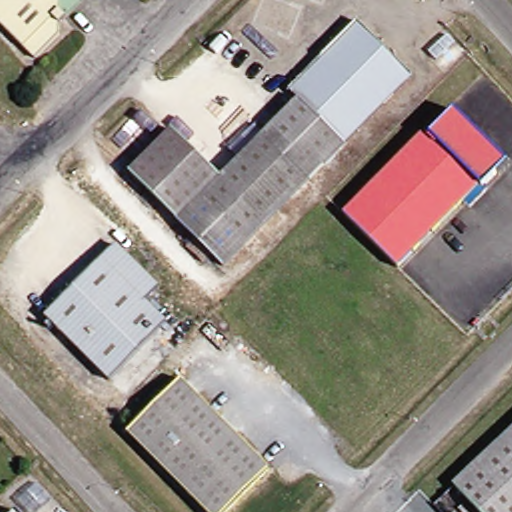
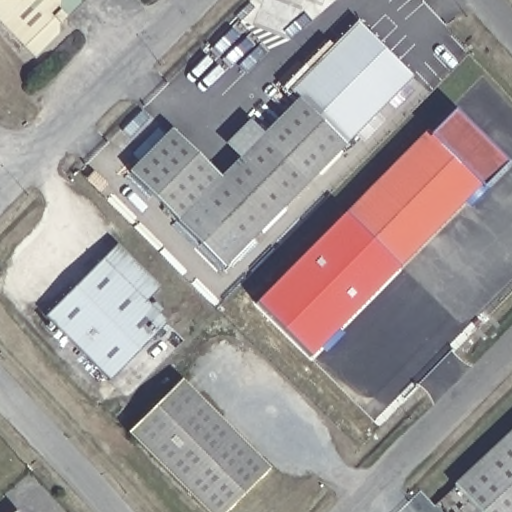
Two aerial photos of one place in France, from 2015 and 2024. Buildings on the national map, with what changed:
unchanged [(31,59),(20,47),(0,27),(0,0),(79,0),(79,1),(62,17),(55,25),(56,35),(31,59)]
unchanged [(174,222),(126,175),(126,174),(126,173),(168,130),(217,179),(295,100),(285,91),(340,35),(353,21),(367,35),(408,77),(219,267),(174,222)]
unchanged [(395,267),(340,214),(421,132),(426,136),(450,111),(502,164),(478,188),(476,185),(473,187),(395,267)]
new [(340,214),(395,267),(308,355),(257,303),(340,214)]
unchanged [(162,323),(106,380),(42,317),(112,246),(156,288),(142,302),(162,323)]
unchanged [(228,512),(198,512),(124,437),(177,384),(266,474),(228,512)]
unchanged [(474,512),(450,485),(512,426),(512,512),(474,512)]

